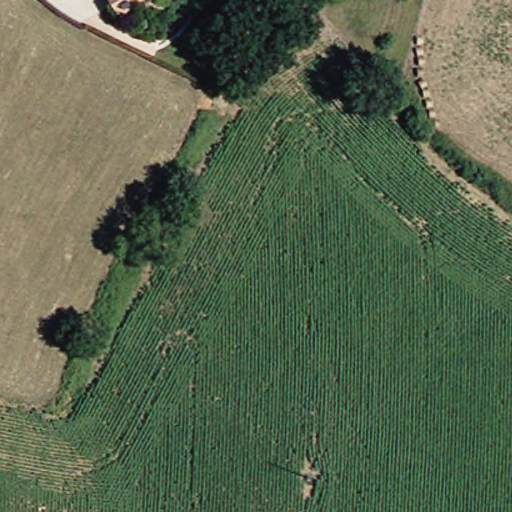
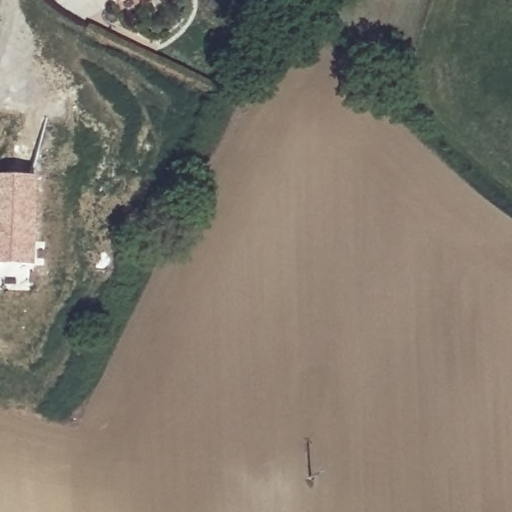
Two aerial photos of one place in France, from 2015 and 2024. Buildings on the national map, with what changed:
unchanged [(104,0),(116,0),(107,5),(104,0)]
new [(30,178),(30,266),(0,265),(0,177),(30,178)]

